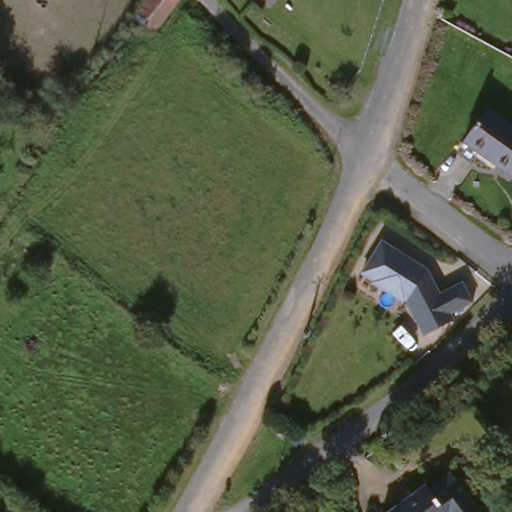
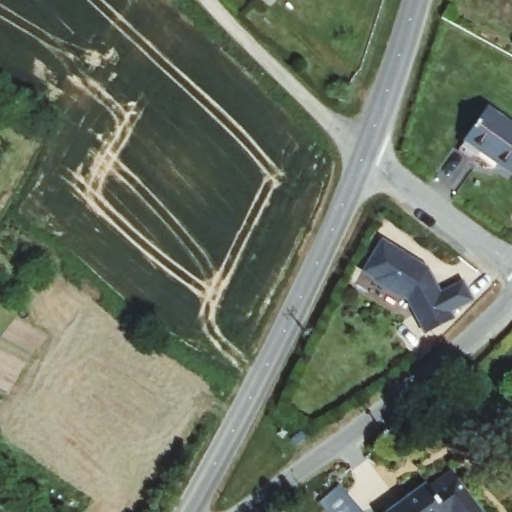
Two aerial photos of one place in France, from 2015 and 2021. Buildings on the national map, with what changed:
unchanged [(146,0),(171,0),(173,2),(149,36),(130,23),(146,0)]
unchanged [(512,134),(512,171),(506,180),(461,145),(484,112),(512,134)]
unchanged [(431,263),(444,285),(468,271),(479,291),(458,305),(461,310),(433,327),(414,295),(411,293),(409,295),(379,279),(380,277),(367,270),(384,238),(431,263)]
unchanged [(426,485),(428,488),(449,470),(479,512),(391,512),(426,485)]
new [(362,512),(326,512),(318,502),(339,483),(362,512)]

